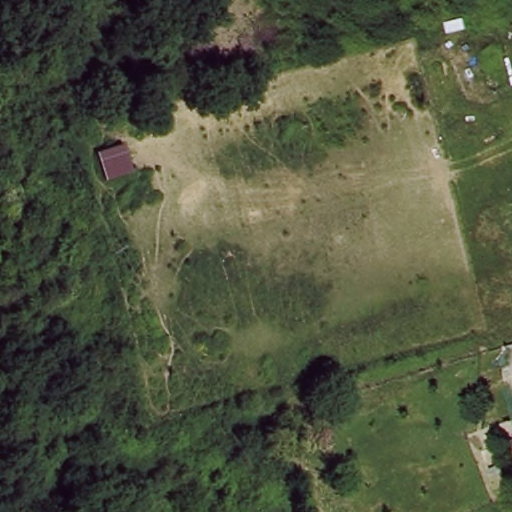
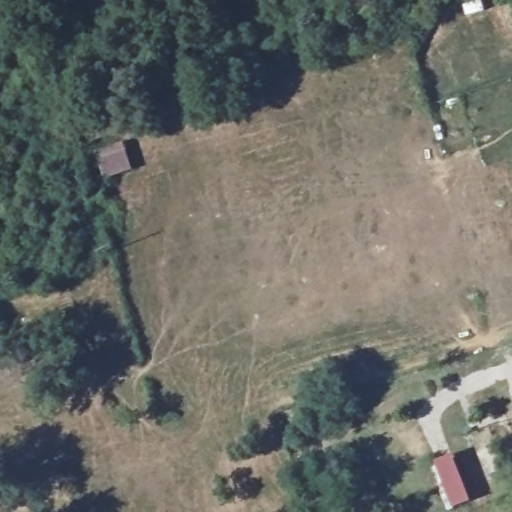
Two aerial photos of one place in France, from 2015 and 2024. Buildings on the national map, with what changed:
unchanged [(127,140),(134,167),(107,178),(95,156),(127,140)]
new [(436,462),(455,455),(471,503),(445,512),(444,512),(430,470),(438,467),(436,462)]

